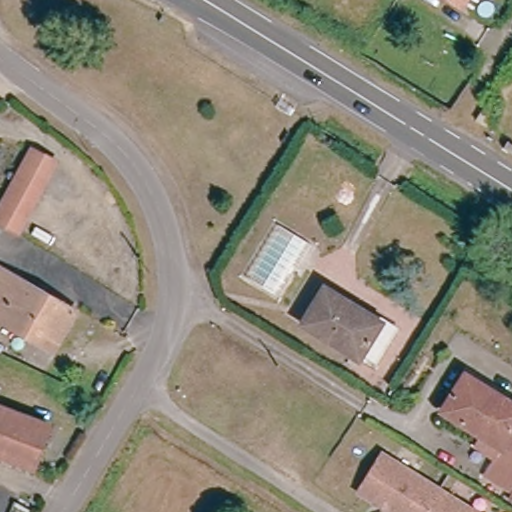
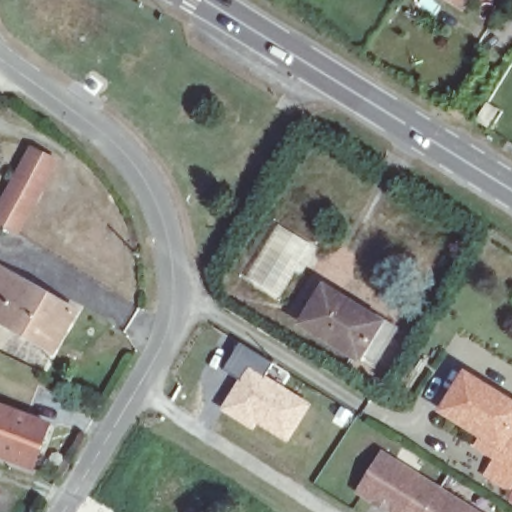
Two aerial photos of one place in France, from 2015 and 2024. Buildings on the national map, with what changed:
unchanged [(466,0),(463,4),(457,0),(466,0)]
unchanged [(497,115),(487,132),(476,126),(486,109),(497,115)]
unchanged [(0,225),(0,198),(27,149),(50,161),(12,231),(0,225)]
unchanged [(70,307),(47,345),(0,317),(0,266),(70,307)]
unchanged [(317,284),(384,326),(364,361),(296,319),(317,284)]
new [(222,369),(239,341),(273,362),(266,376),(312,403),(287,443),(258,425),(254,432),(219,409),(239,380),(222,369)]
unchanged [(508,485),(482,471),(492,456),(470,443),(477,431),(437,406),(458,370),(512,403),(512,419),(510,423),(512,425),(512,495),(505,491),(508,485)]
unchanged [(42,427),(27,465),(0,455),(0,410),(42,427)]
unchanged [(380,503),(367,495),(350,485),(373,447),(431,483),(476,512),(394,512),(380,503)]

